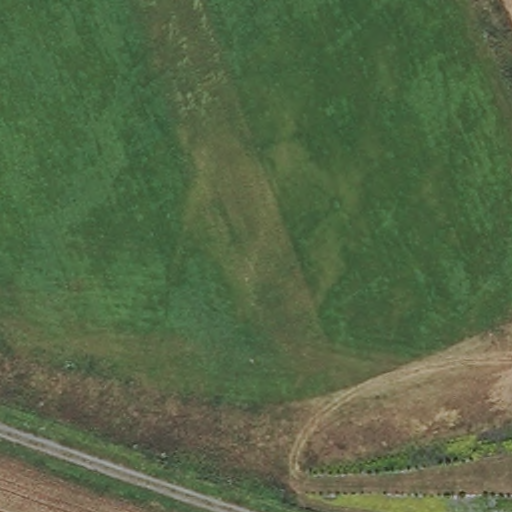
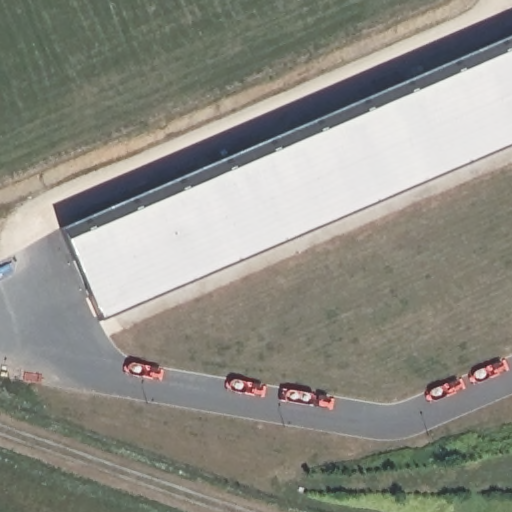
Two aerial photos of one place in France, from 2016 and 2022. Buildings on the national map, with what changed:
new [(100,317),(66,242),(512,52),(512,142),(100,317)]

